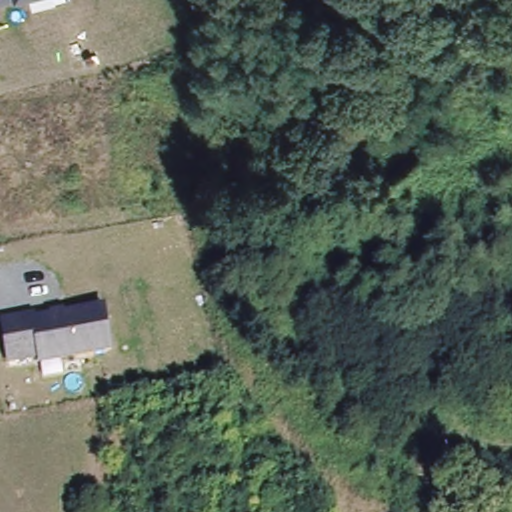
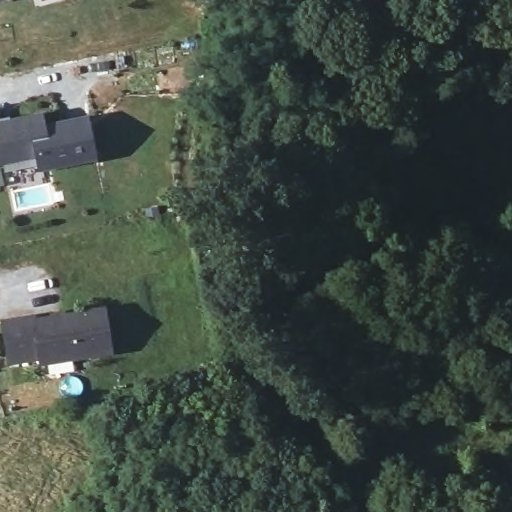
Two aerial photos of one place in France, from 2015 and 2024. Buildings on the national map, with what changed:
new [(35,159),(0,166),(0,118),(11,116),(12,121),(42,115),(45,125),(89,117),(97,160),(38,172),(35,159)]
unchanged [(34,321),(106,310),(112,352),(40,365),(39,358),(11,362),(2,318),(32,314),(34,321)]

